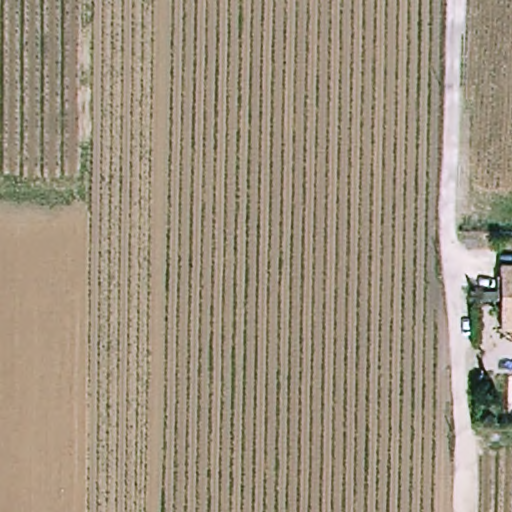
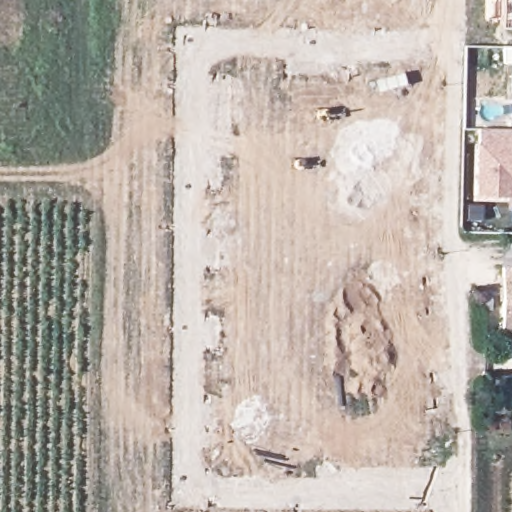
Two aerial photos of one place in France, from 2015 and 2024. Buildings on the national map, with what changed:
new [(500,0),(512,0),(512,26),(501,25),(500,0)]
new [(503,45),(512,45),(512,64),(502,62),(503,45)]
new [(479,128),(512,129),(512,197),(476,196),(479,128)]
unchanged [(504,268),(512,268),(512,317),(504,317),(504,268)]

